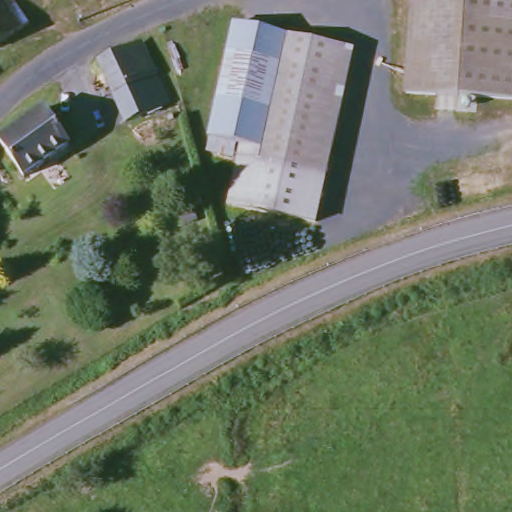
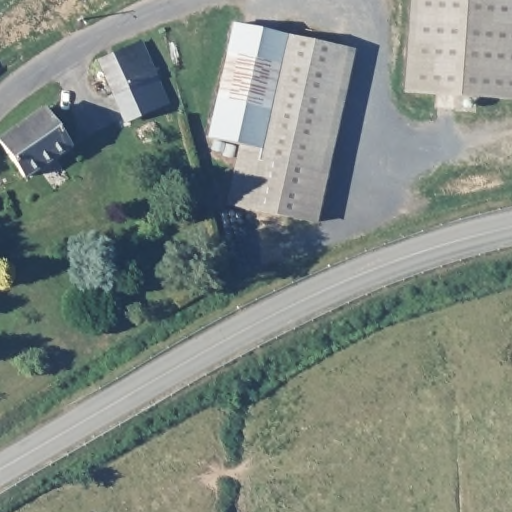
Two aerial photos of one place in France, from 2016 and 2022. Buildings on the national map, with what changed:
unchanged [(0,44),(0,0),(11,0),(28,25),(0,44)]
unchanged [(403,80),(420,0),(512,0),(512,101),(403,80)]
unchanged [(226,204),(241,141),(235,141),(233,156),(206,151),(207,134),(233,21),(354,49),(316,223),(226,204)]
unchanged [(113,87),(98,56),(118,46),(140,37),(154,69),(166,96),(150,104),(125,115),(113,87)]
unchanged [(73,152),(27,180),(3,142),(49,113),(73,152)]

